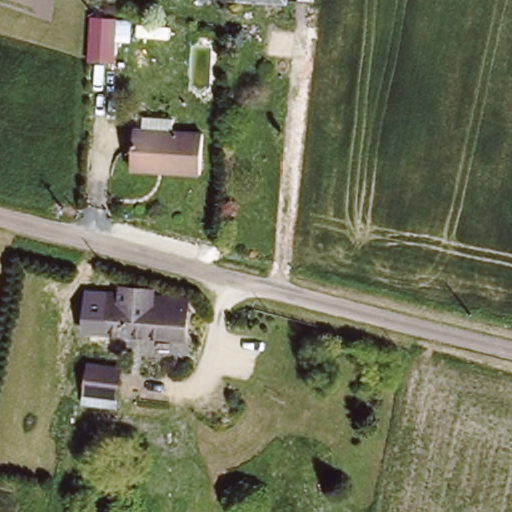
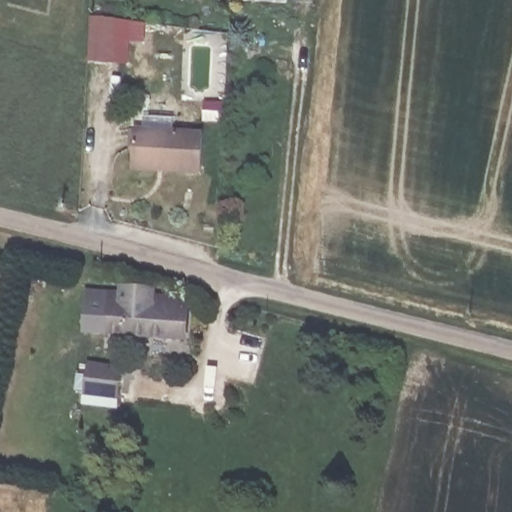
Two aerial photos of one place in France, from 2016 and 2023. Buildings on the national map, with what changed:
unchanged [(90,11),(115,15),(114,58),(87,58),(90,11)]
unchanged [(130,131),(197,135),(195,173),(159,172),(157,166),(128,165),(130,131)]
unchanged [(91,288),(124,287),(125,279),(157,285),(156,293),(189,297),(185,339),(85,329),(91,288)]
unchanged [(85,371),(118,378),(113,398),(80,390),(85,371)]

